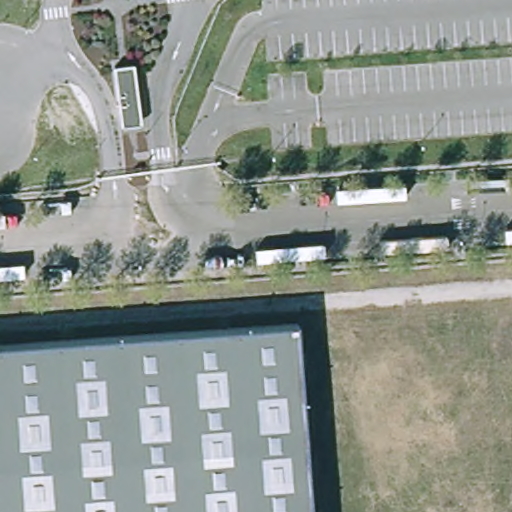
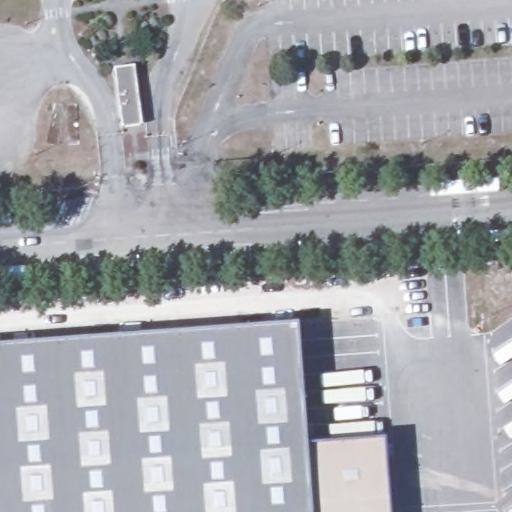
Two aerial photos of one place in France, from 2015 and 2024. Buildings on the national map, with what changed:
unchanged [(134,65),(142,125),(122,127),(114,68),(134,65)]
unchanged [(184,334),(296,326),(309,496),(310,512),(0,512),(0,348),(184,334)]
new [(310,512),(309,496),(305,443),(384,437),(389,512),(310,512)]

